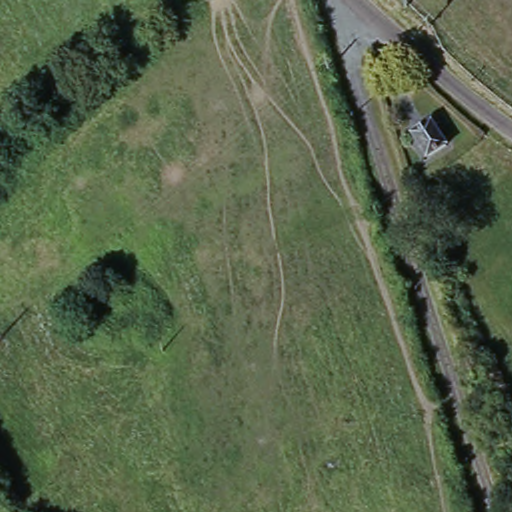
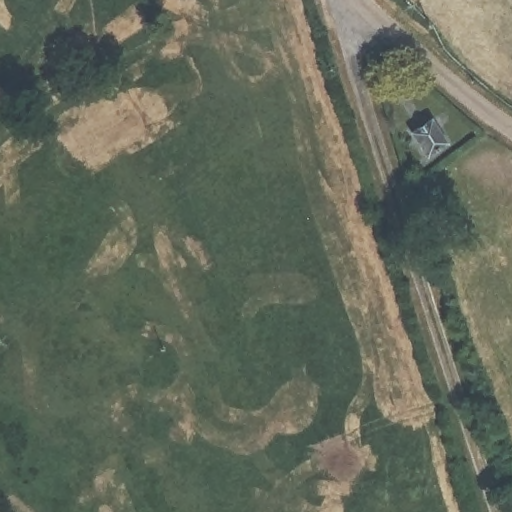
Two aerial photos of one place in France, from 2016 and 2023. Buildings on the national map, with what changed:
unchanged [(429,118),(449,141),(428,161),(407,136),(429,118)]

